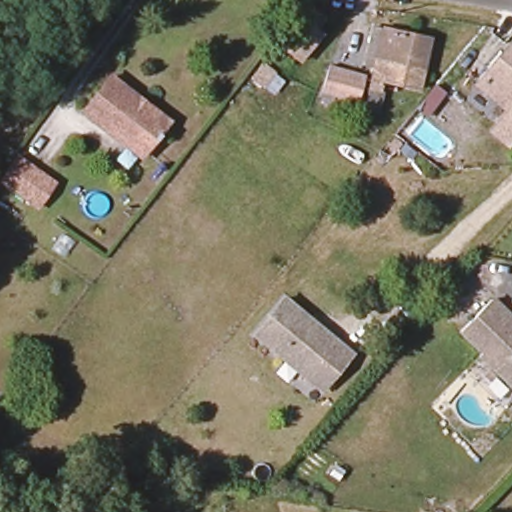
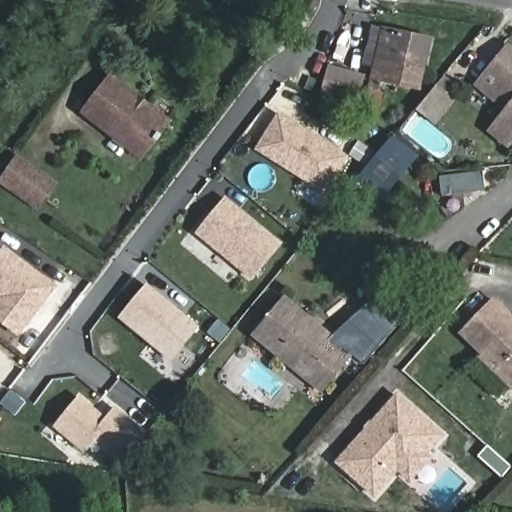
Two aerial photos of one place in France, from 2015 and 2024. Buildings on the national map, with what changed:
demolished [(319,30),(324,34),(301,62),(281,46),(313,8),(327,20),(319,30)]
unchanged [(362,110),(373,66),(363,64),(372,27),(428,40),(421,76),(385,68),(375,113),(362,110)]
unchanged [(512,131),(507,137),(490,123),(505,102),(475,78),(505,40),(512,46),(512,131)]
unchanged [(353,103),(318,94),(326,66),(360,76),(353,103)]
unchanged [(142,100),(138,105),(167,128),(147,155),(119,133),(115,138),(84,114),(113,77),(142,100)]
demolished [(414,152),(393,138),(423,99),(442,115),(414,152)]
new [(277,111),(350,155),(328,193),(255,150),(277,111)]
demolished [(478,128),(468,140),(456,130),(465,118),(478,128)]
new [(420,156),(379,200),(354,179),(394,133),(420,156)]
unchanged [(1,183),(19,158),(57,184),(39,209),(1,183)]
new [(283,243),(252,281),(195,234),(226,197),(283,243)]
new [(57,287),(19,337),(0,322),(0,251),(4,246),(57,287)]
new [(118,318),(146,283),(199,326),(170,361),(118,318)]
unchanged [(302,377),(251,334),(282,298),(349,354),(331,375),(319,390),(302,377)]
new [(363,364),(349,354),(330,338),(374,298),(399,323),(363,364)]
unchanged [(484,357),(461,336),(492,304),(511,323),(512,323),(512,388),(482,359),(484,357)]
new [(434,458),(410,485),(398,475),(374,499),(334,463),(396,393),(445,436),(428,454),(434,458)]
new [(106,418),(116,406),(148,432),(120,466),(94,444),(85,455),(52,428),(80,395),(106,418)]

